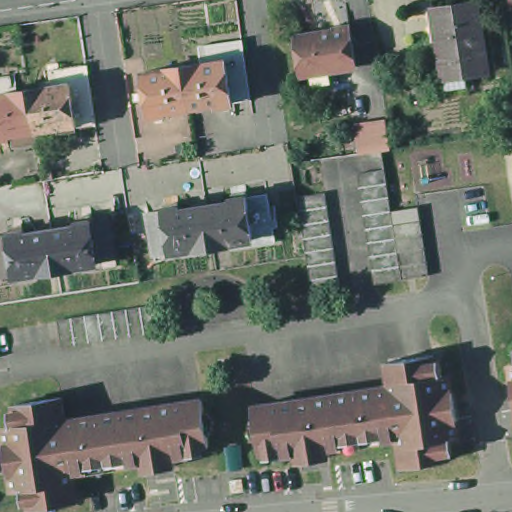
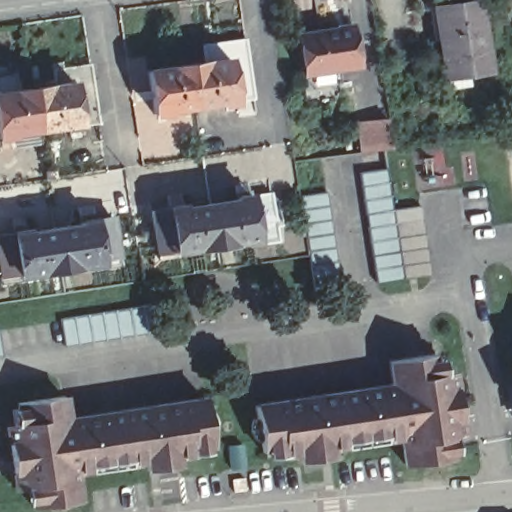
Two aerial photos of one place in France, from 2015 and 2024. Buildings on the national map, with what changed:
unchanged [(448,89),(447,78),(435,8),(480,0),(491,71),(468,74),(470,85),(448,89)]
unchanged [(351,31),(358,71),(338,74),(306,79),(300,39),(351,31)]
unchanged [(190,51),(233,44),(243,103),(226,106),(220,64),(192,68),(190,51)]
unchanged [(86,125),(80,83),(61,85),(59,69),(95,64),(96,63),(105,122),(103,123),(86,125)]
unchanged [(177,70),(192,68),(220,64),(226,106),(212,108),(212,106),(183,110),(177,70)]
unchanged [(160,114),(160,116),(145,119),(138,76),(177,70),(183,110),(160,114)]
unchanged [(20,74),(22,91),(0,95),(0,78),(20,74)]
unchanged [(76,137),(75,127),(71,127),(71,125),(43,130),(37,89),(61,85),(80,83),(86,125),(84,125),(86,135),(76,137)]
unchanged [(20,133),(20,135),(5,138),(0,111),(0,95),(22,91),(37,89),(43,130),(20,133)]
unchanged [(0,139),(0,111),(5,138),(0,139)]
unchanged [(356,127),(387,123),(392,153),(361,157),(356,127)]
unchanged [(405,278),(377,283),(360,172),(386,167),(393,209),(405,278)]
unchanged [(225,241),(206,244),(200,203),(227,199),(227,197),(241,195),(261,192),(268,240),(249,243),(225,247),(225,241)]
unchanged [(326,196),(341,294),(315,298),(308,261),(299,200),(326,196)]
unchanged [(167,255),(149,258),(141,211),(160,208),(173,205),(174,208),(200,203),(206,244),(186,247),(186,252),(167,255)]
unchanged [(421,205),(432,273),(405,278),(393,209),(421,205)]
unchanged [(71,222),(86,219),(86,222),(102,219),(104,219),(111,263),(92,266),(92,262),(51,268),(43,228),(72,224),(71,222)]
unchanged [(0,282),(0,233),(4,232),(18,230),(18,232),(43,228),(51,268),(12,274),(13,279),(0,282)]
unchanged [(160,307),(163,334),(67,350),(63,323),(160,307)]
unchanged [(298,458),(296,451),(280,453),(278,447),(258,450),(251,404),(390,384),(386,359),(432,352),(433,358),(440,357),(444,388),(452,387),(457,417),(449,418),(451,434),(446,435),(449,456),(402,463),(398,435),(328,446),(330,453),(298,458)]
unchanged [(145,469),(144,460),(78,471),(82,500),(36,508),(33,486),(27,487),(25,472),(17,473),(12,440),(20,439),(15,409),(21,408),(20,403),(66,396),(70,420),(205,398),(212,444),(191,447),(192,453),(176,455),(177,464),(145,469)]
unchanged [(243,476),(245,489),(233,490),(231,477),(243,476)]

